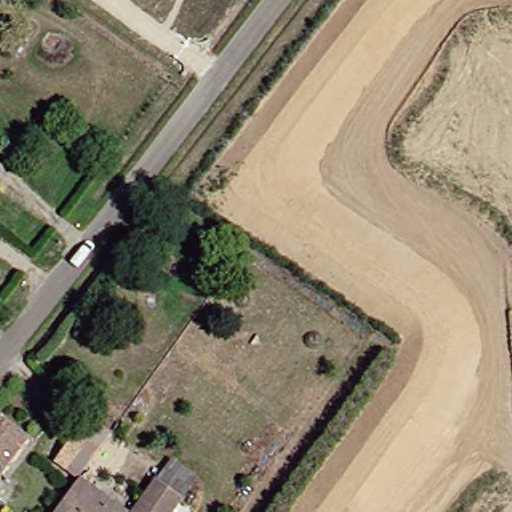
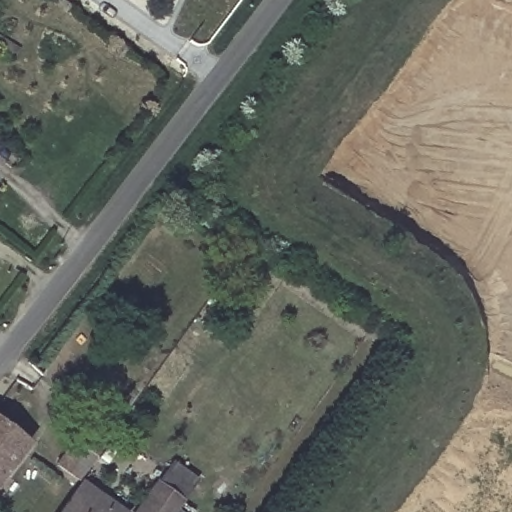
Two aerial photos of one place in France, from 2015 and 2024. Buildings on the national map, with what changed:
unchanged [(79,414),(104,433),(72,479),(46,461),(79,414)]
unchanged [(22,441),(0,468),(0,425),(22,441)]
unchanged [(118,512),(54,512),(78,477),(121,509),(118,512)]
unchanged [(164,512),(126,512),(152,477),(176,495),(164,512)]

